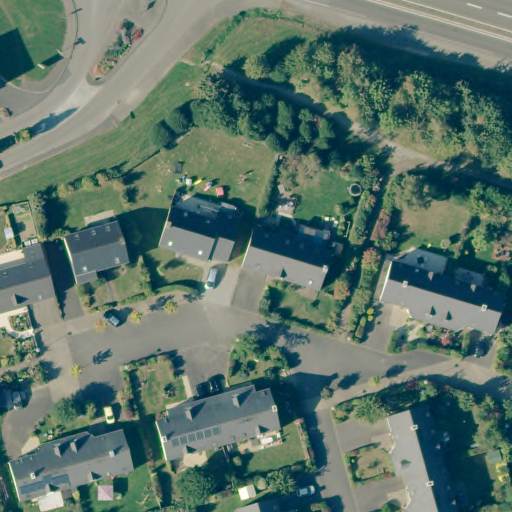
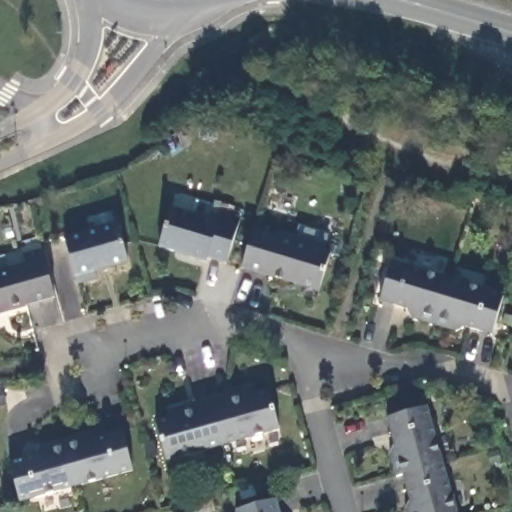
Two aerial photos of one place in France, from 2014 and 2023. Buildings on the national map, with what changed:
unchanged [(213,258),(211,262),(194,257),(195,255),(164,246),(175,208),(222,222),(224,217),(244,223),(231,264),(213,258)]
unchanged [(100,272),(102,279),(82,285),(70,239),(122,224),(133,263),(100,272)]
unchanged [(301,236),(305,244),(335,253),(323,292),(246,268),(258,230),(285,238),(286,232),(301,236)]
unchanged [(30,305),(31,306),(14,311),(13,310),(0,314),(0,274),(33,264),(29,250),(45,245),(60,297),(30,305)]
unchanged [(411,318),(407,311),(408,309),(380,300),(391,262),(447,279),(433,324),(411,318)]
unchanged [(447,279),(503,296),(491,334),(463,326),(463,328),(456,331),(433,324),(447,279)]
unchanged [(258,387),(260,394),(273,391),(284,429),(228,445),(215,399),(258,387)]
unchanged [(4,404),(0,405),(0,391),(4,404)]
unchanged [(228,445),(171,461),(160,422),(174,419),(171,411),(215,399),(228,445)]
unchanged [(395,454),(398,447),(400,446),(392,418),(431,407),(446,464),(408,474),(401,476),(395,454)]
unchanged [(86,434),(93,438),(94,440),(122,432),(132,470),(76,486),(64,440),(86,434)]
unchanged [(76,486),(20,502),(9,463),(37,455),(37,453),(41,446),(64,440),(76,486)]
unchanged [(414,502),(416,502),(408,474),(446,464),(460,512),(411,512),(410,509),(414,502)]
unchanged [(275,499),(279,512),(237,512),(236,510),(275,499)]

